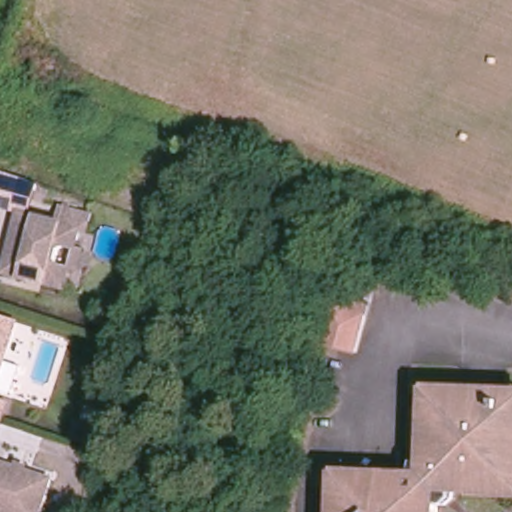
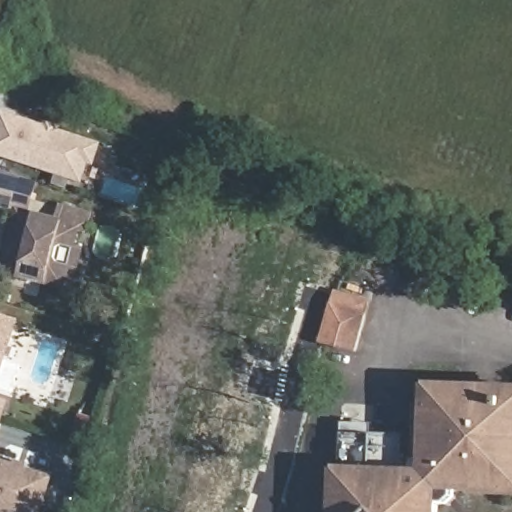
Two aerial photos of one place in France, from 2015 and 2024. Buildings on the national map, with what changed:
new [(48,122),(60,126),(59,129),(103,143),(95,165),(90,163),(83,183),(0,156),(0,113),(1,110),(46,125),(48,122)]
unchanged [(31,213),(23,211),(0,204),(0,171),(40,183),(31,213)]
unchanged [(4,269),(23,212),(23,211),(31,213),(61,223),(66,209),(94,218),(89,233),(83,231),(76,251),(83,253),(77,270),(71,268),(64,289),(45,282),(30,277),(4,269)]
unchanged [(356,355),(315,347),(332,292),(372,301),(356,355)]
unchanged [(11,394),(0,391),(0,314),(19,319),(5,359),(21,365),(11,394)]
unchanged [(407,476),(407,461),(422,461),(425,389),(512,392),(512,494),(474,492),(474,489),(451,489),(450,498),(443,505),(432,505),(432,512),(333,512),(334,473),(407,476)]
unchanged [(0,425),(0,399),(9,402),(0,425)]
unchanged [(86,446),(69,442),(75,420),(91,423),(86,446)]
unchanged [(40,511),(39,512),(0,512),(0,464),(51,488),(40,511)]

